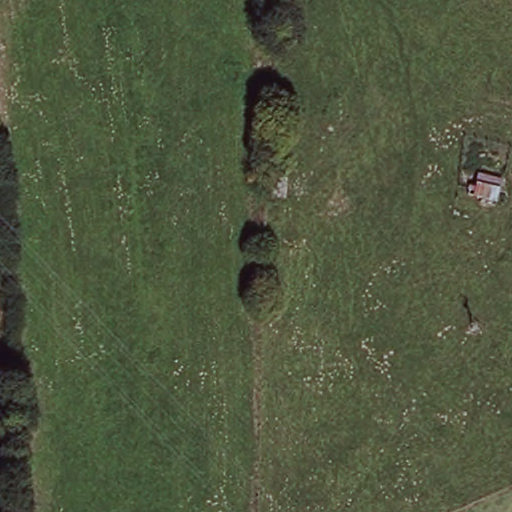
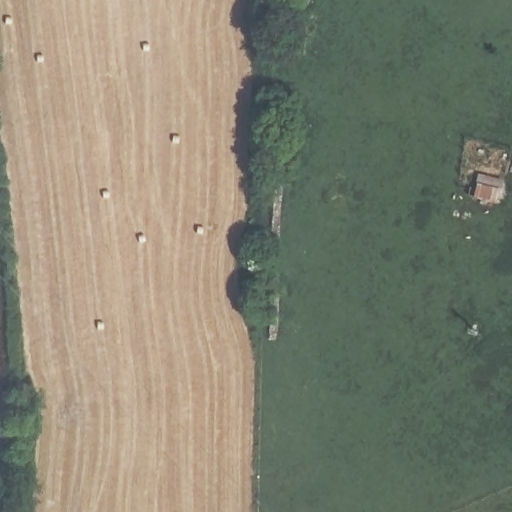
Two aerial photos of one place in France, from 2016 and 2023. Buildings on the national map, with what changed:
unchanged [(498,196),(473,193),(473,174),(499,175),(498,196)]

